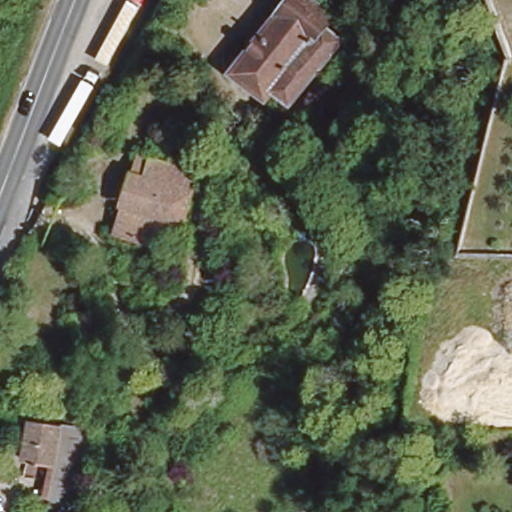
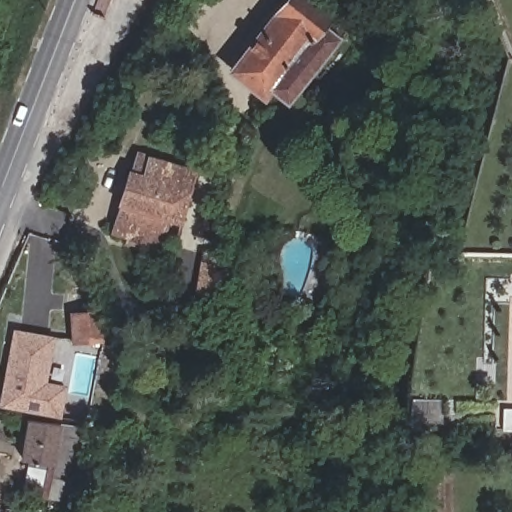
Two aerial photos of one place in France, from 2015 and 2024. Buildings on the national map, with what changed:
unchanged [(262,86),(257,92),(222,62),(275,0),(309,0),(320,10),(313,17),(324,27),(337,15),(346,22),(335,35),(329,43),(328,45),(319,55),(293,87),(281,104),(262,86)]
unchanged [(166,217),(157,242),(112,225),(121,200),(117,199),(128,169),(131,170),(139,147),(197,169),(177,222),(166,217)]
unchanged [(104,341),(75,340),(75,315),(105,315),(104,341)]
new [(68,386),(61,420),(0,407),(0,399),(14,329),(56,337),(48,382),(68,386)]
unchanged [(46,495),(52,464),(24,458),(30,422),(87,433),(73,510),(49,505),(51,496),(46,495)]
unchanged [(121,481),(110,478),(114,456),(126,458),(121,481)]

